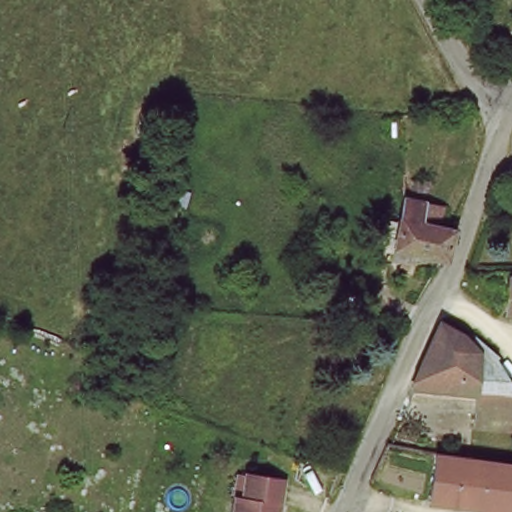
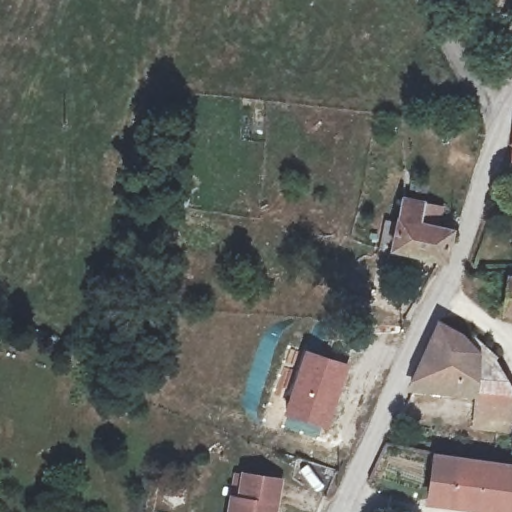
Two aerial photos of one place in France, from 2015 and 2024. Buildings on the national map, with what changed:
unchanged [(438,255),(392,241),(400,193),(423,200),(439,205),(436,222),(450,226),(438,255)]
unchanged [(503,315),(507,272),(512,272),(512,316),(503,315)]
unchanged [(478,428),(480,399),(409,386),(440,327),(473,351),(496,375),(512,393),(512,432),(478,428)]
new [(285,416),(283,415),(304,349),(351,364),(326,438),(282,426),(285,416)]
unchanged [(429,501),(437,457),(512,468),(512,512),(493,512),(429,501)]
unchanged [(230,497),(238,498),(242,475),(279,482),(275,505),(273,512),(227,512),(230,497)]

